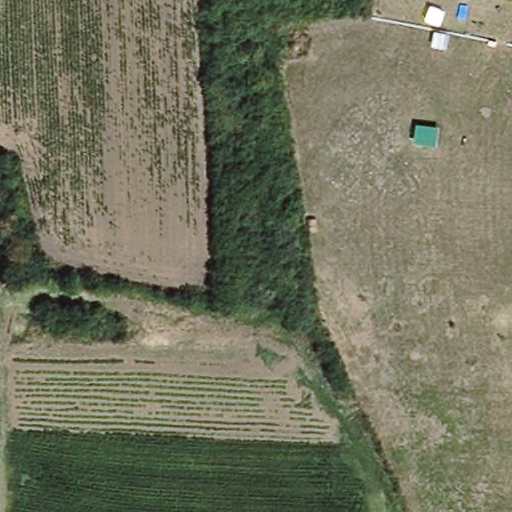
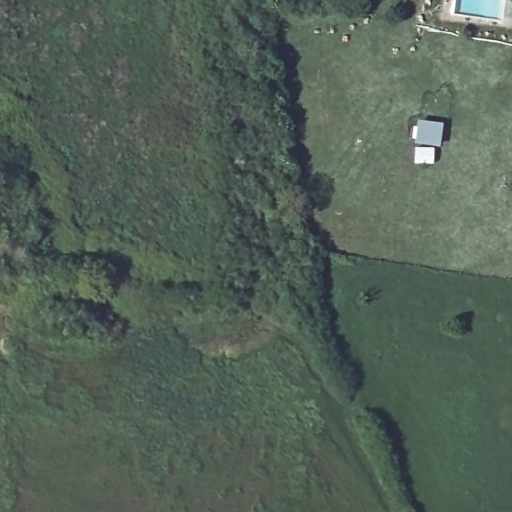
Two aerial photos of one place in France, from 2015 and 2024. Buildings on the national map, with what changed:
[]

